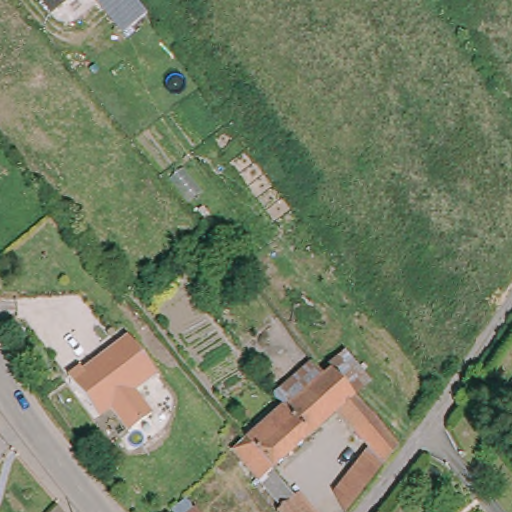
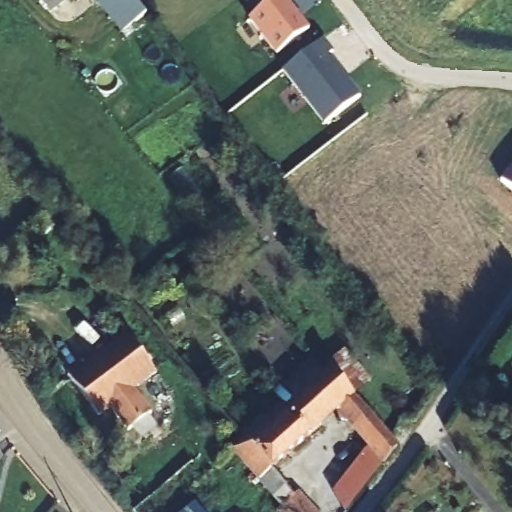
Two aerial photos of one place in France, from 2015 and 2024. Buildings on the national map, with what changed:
unchanged [(40,0),(64,0),(50,12),(40,0)]
new [(119,33),(93,1),(95,0),(132,0),(142,14),(119,33)]
new [(274,0),(287,0),(310,30),(275,56),(247,20),(274,0)]
new [(282,72),(323,42),(333,54),(328,57),(360,98),(323,125),(282,72)]
unchanged [(157,371),(137,387),(155,411),(127,430),(110,405),(97,415),(72,381),(65,371),(78,362),(82,365),(127,332),(157,371)]
unchanged [(347,346),(372,380),(357,395),(333,365),(330,362),(347,346)]
unchanged [(271,390),(309,355),(325,373),(292,404),(289,401),(282,406),(271,390)]
unchanged [(337,493),(372,447),(342,408),(277,468),(249,437),(289,401),(292,404),(325,373),(333,365),(335,367),(400,445),(347,512),(337,493)]
unchanged [(320,512),(280,512),(277,510),(285,505),(237,448),(249,437),(277,468),(275,470),(293,496),(300,491),(320,512)]
unchanged [(213,498),(227,486),(246,512),(223,512),(213,498)]
unchanged [(197,507),(201,512),(192,512),(197,507)]

